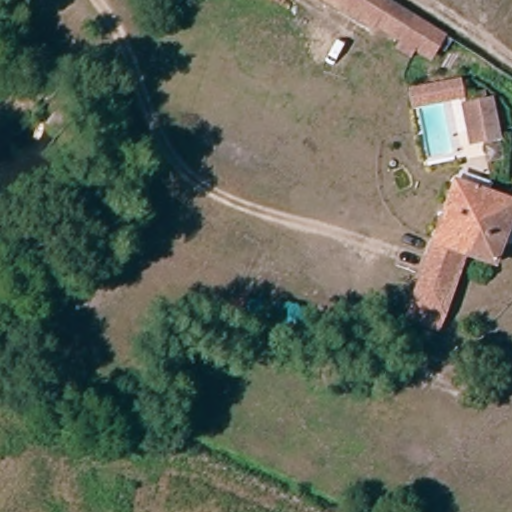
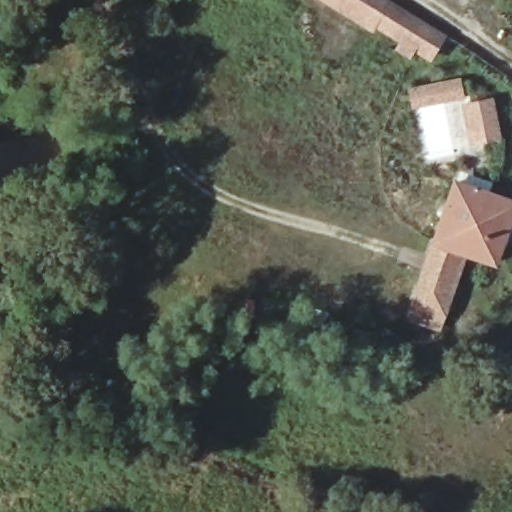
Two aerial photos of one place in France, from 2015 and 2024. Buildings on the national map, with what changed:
unchanged [(328,0),(390,0),(448,39),(428,67),(328,0)]
unchanged [(475,144),(466,107),(492,101),(500,137),(475,144)]
unchanged [(437,326),(410,317),(453,180),(512,199),(512,211),(496,260),(462,250),(437,326)]

